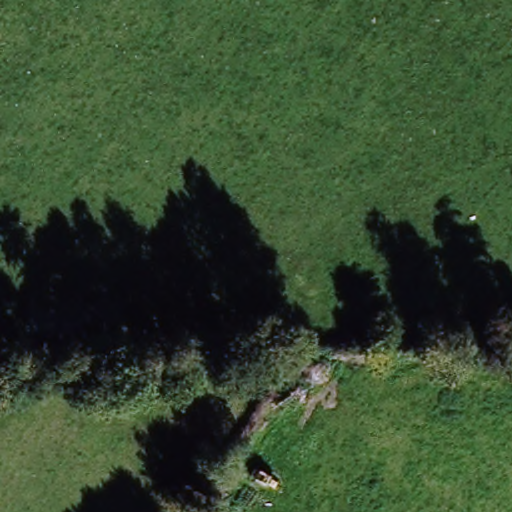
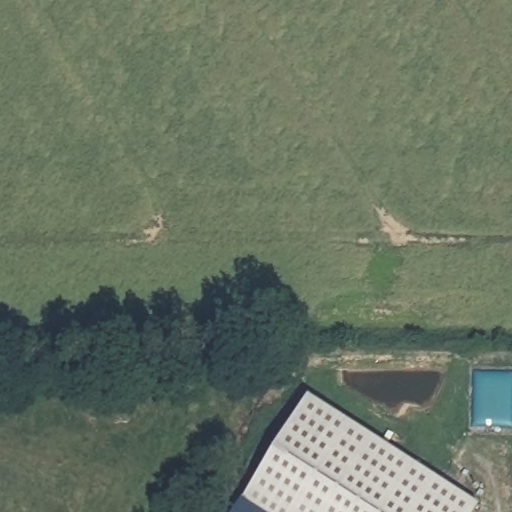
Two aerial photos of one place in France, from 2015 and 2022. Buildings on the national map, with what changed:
new [(477,512),(235,512),(308,396),(481,506),(477,512)]

